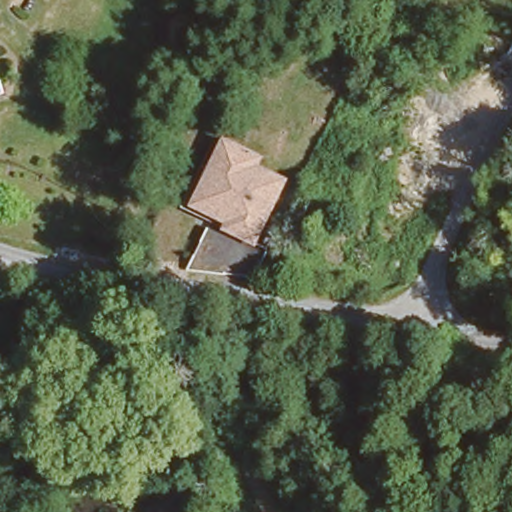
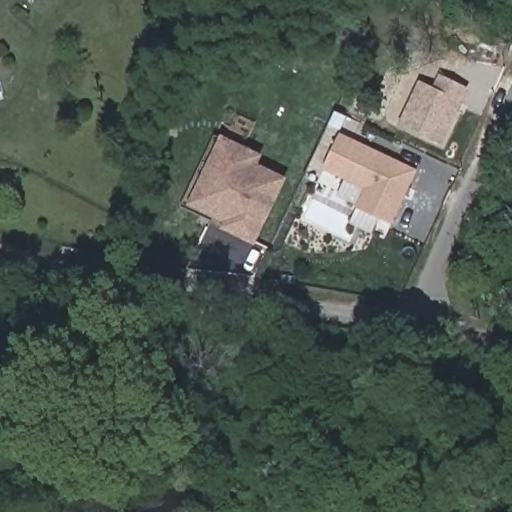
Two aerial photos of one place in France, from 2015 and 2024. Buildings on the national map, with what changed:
new [(422,83),(436,90),(442,76),(467,88),(442,142),(403,124),(422,83)]
unchanged [(259,247),(220,231),(224,222),(188,205),(221,134),(264,155),(259,164),(289,179),(259,247)]
new [(342,135),(418,171),(393,222),(360,207),(369,188),(327,168),(342,135)]

